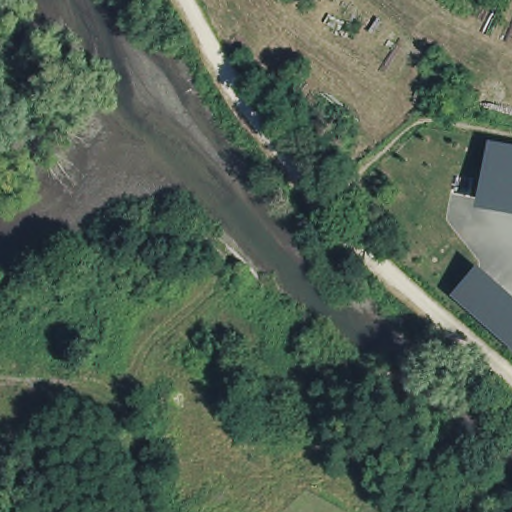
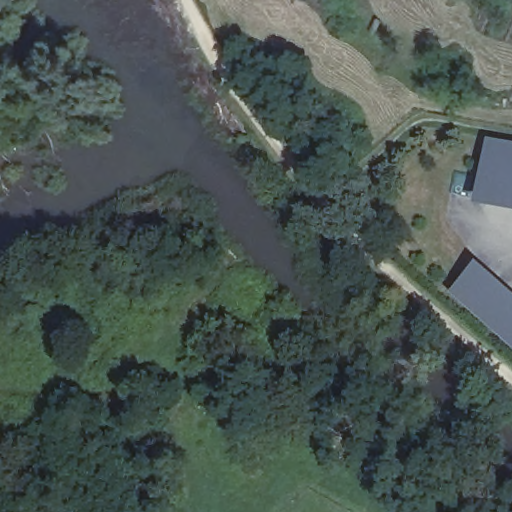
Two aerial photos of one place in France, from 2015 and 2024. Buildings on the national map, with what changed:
unchanged [(512,143),(512,211),(480,206),(491,140),(512,143)]
unchanged [(512,345),(455,295),(482,263),(512,291),(512,345)]

